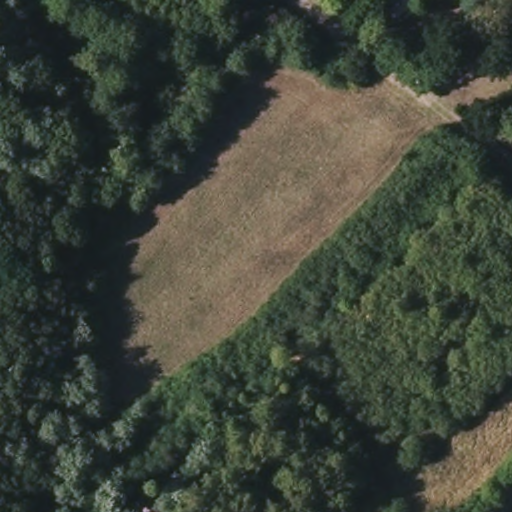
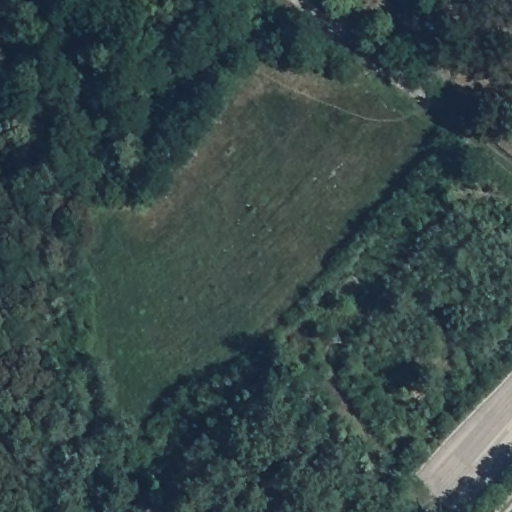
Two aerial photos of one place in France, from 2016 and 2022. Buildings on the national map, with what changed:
[]

